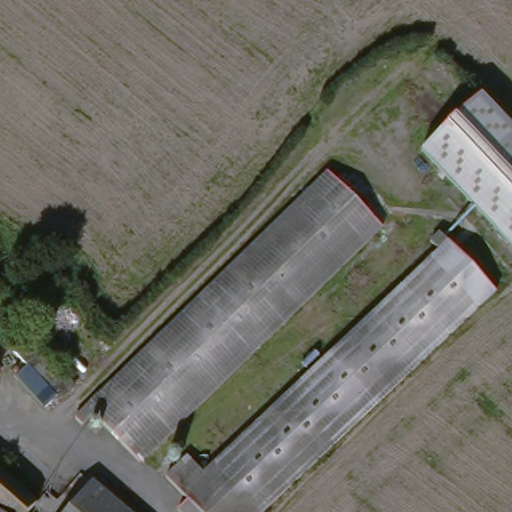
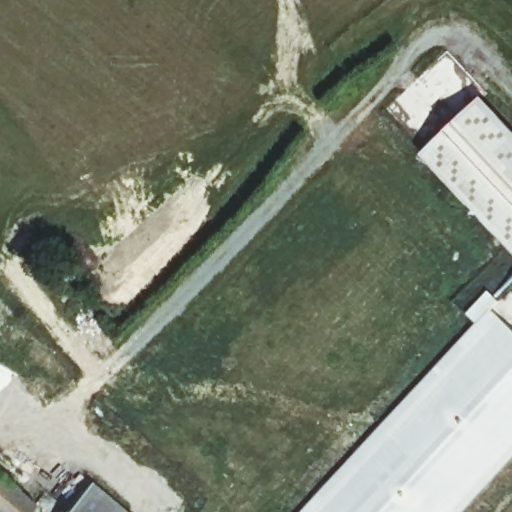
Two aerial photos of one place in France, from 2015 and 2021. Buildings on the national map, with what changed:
unchanged [(512,138),(512,247),(419,150),(473,98),(512,138)]
demolished [(322,170),(376,224),(135,461),(81,406),(322,170)]
demolished [(186,453),(204,473),(446,242),(488,288),(256,512),(198,512),(163,475),(186,453)]
new [(512,329),(512,457),(461,512),(300,512),(490,308),(512,329)]
demolished [(75,387),(68,393),(61,400),(0,340),(0,337),(14,323),(75,387)]
unchanged [(0,369),(0,362),(3,365),(0,369)]
unchanged [(31,512),(0,512),(0,471),(39,500),(31,512)]
unchanged [(127,512),(63,512),(96,479),(127,512)]

